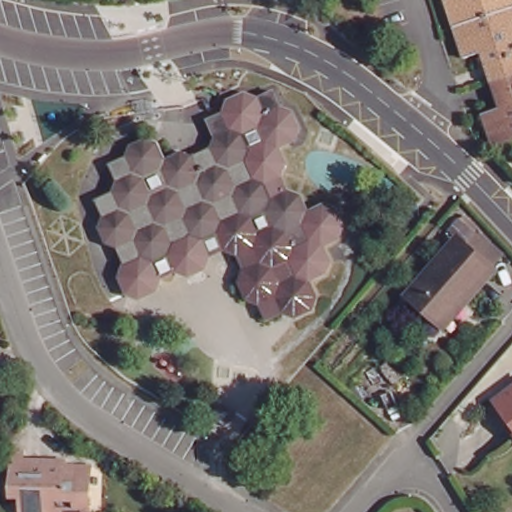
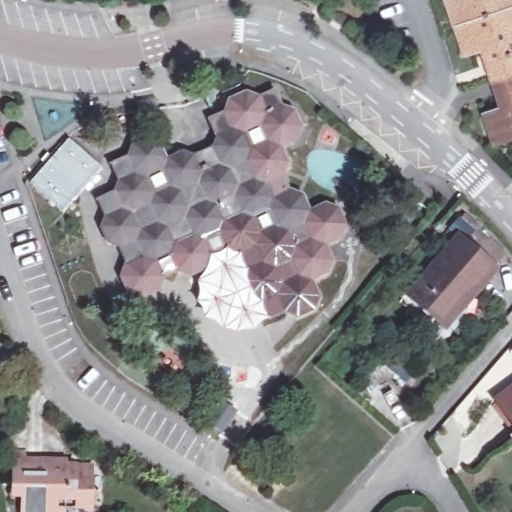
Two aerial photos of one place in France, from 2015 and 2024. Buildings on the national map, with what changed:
unchanged [(446,0),(512,0),(512,140),(494,146),(485,115),(500,110),(482,54),(465,59),(446,0)]
unchanged [(217,259),(212,269),(194,277),(182,272),(166,279),(161,291),(145,298),(133,294),(126,278),(131,265),(124,250),(111,244),(104,227),(109,217),(101,200),(118,194),(124,180),(115,165),(130,158),(135,146),(152,139),(165,144),(173,159),(188,151),(199,156),(215,149),(221,136),(214,119),(231,113),(236,101),(252,94),(263,98),(270,114),(286,107),(298,111),(305,128),(300,139),(284,146),(292,164),(288,177),(295,193),(307,197),(311,209),(327,204),(339,209),(345,228),(341,240),(325,248),(333,264),(328,276),(313,283),(321,299),(317,310),(297,320),(286,317),(272,323),(265,307),(253,302),(246,287),(251,273),(243,258),(232,252),(217,259)]
new [(68,136),(102,166),(63,210),(30,180),(68,136)]
unchanged [(440,323),(437,319),(409,294),(456,240),(465,248),(479,233),(504,254),(490,269),(494,273),(469,302),(447,328),(440,323)]
unchanged [(512,399),(512,421),(501,407),(512,399)]
unchanged [(65,476),(71,476),(71,472),(96,473),(95,512),(28,512),(28,495),(19,495),(19,467),(19,459),(30,459),(30,467),(65,469),(65,476)]

